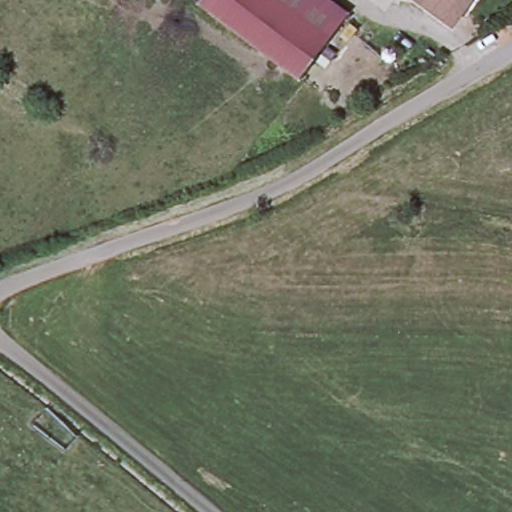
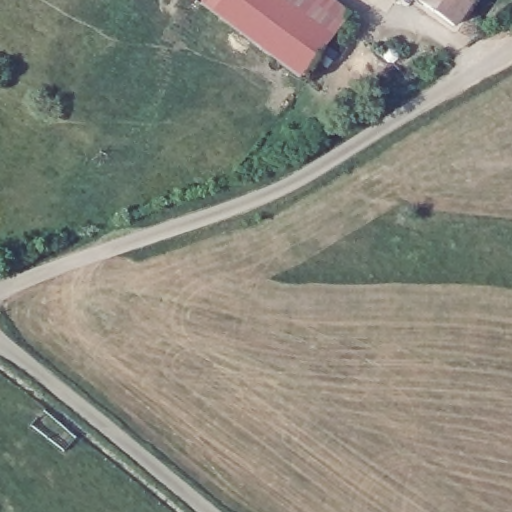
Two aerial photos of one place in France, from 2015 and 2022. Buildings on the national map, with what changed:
unchanged [(199,6),(204,0),(322,0),(347,19),(330,41),(297,83),(199,6)]
unchanged [(471,0),(468,4),(453,24),(452,25),(419,0),(471,0)]

